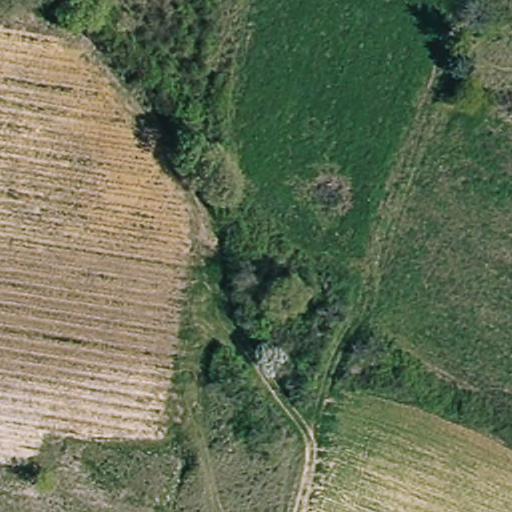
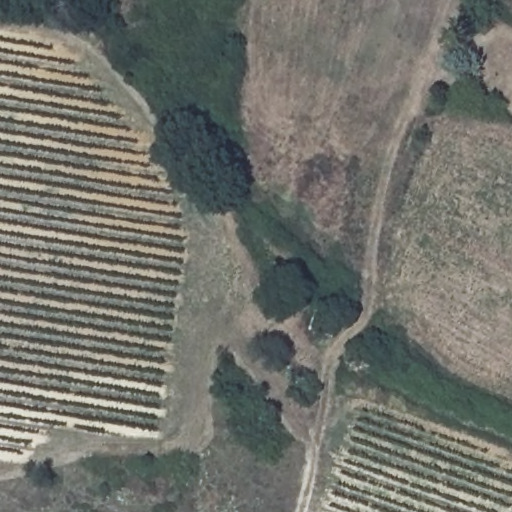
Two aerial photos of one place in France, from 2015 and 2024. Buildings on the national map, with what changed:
unchanged [(463,19),(472,0),(488,7),(479,25),(463,19)]
unchanged [(331,335),(310,330),(315,310),(336,315),(331,335)]

